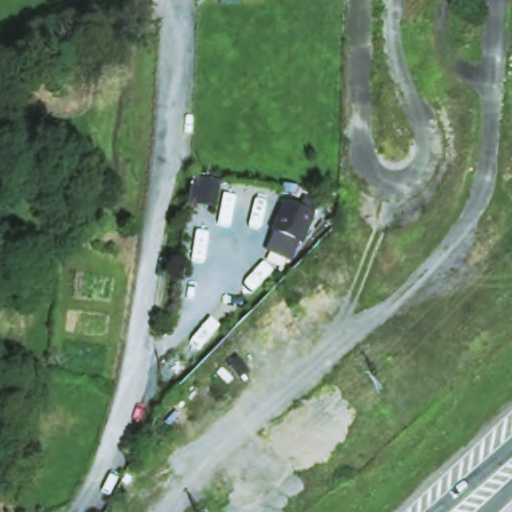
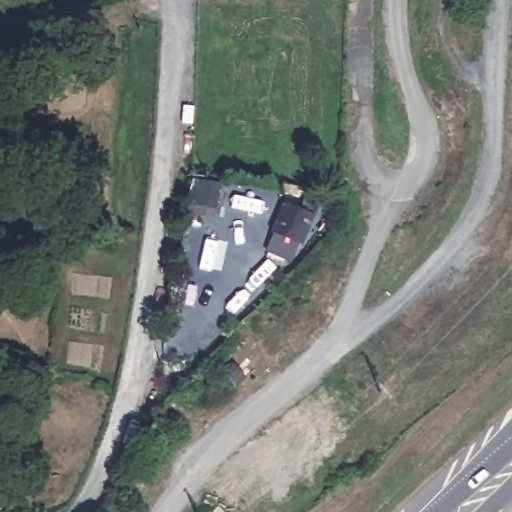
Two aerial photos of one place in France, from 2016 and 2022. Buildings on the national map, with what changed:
unchanged [(250,234),(260,218),(257,217),(273,191),(287,200),(293,192),(305,199),(283,233),(281,232),(272,247),(250,234)]

